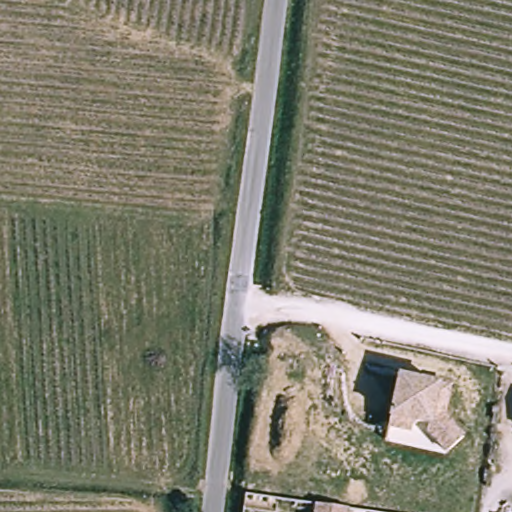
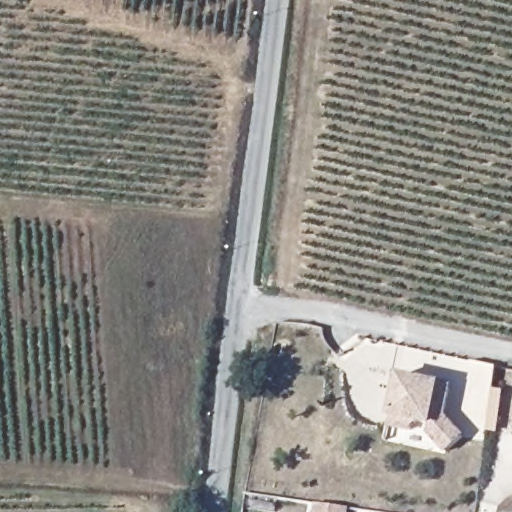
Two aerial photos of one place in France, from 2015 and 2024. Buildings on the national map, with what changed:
unchanged [(446,387),(442,416),(463,435),(448,452),(427,433),(428,424),(418,423),(411,428),(410,432),(387,429),(395,379),(446,387)]
unchanged [(347,508),(347,512),(315,512),(316,504),(347,508)]

